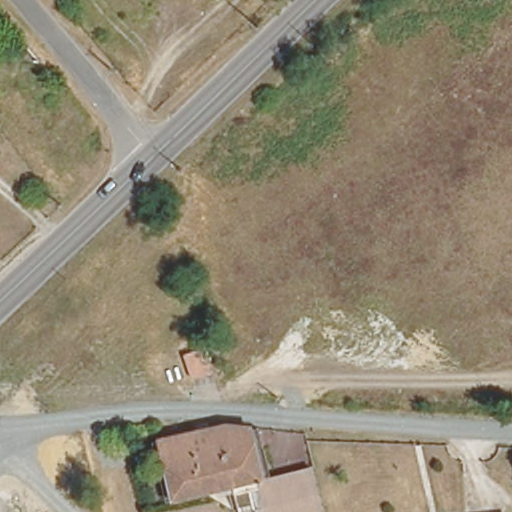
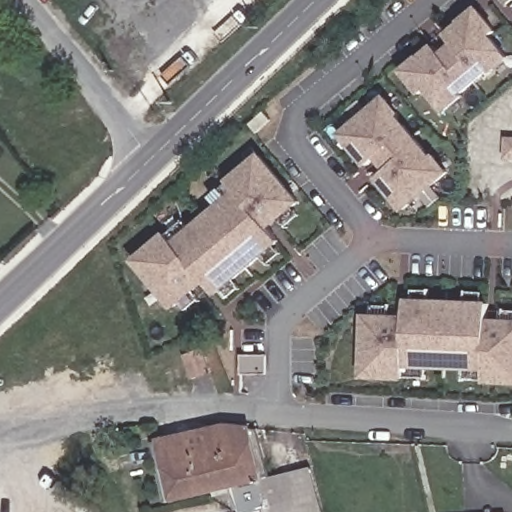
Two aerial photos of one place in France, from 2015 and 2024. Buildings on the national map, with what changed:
new [(440,52),(453,41),(447,34),(459,23),(458,21),(479,5),(498,29),(494,34),(511,58),(493,72),(492,70),(462,95),(464,98),(444,112),(427,92),(421,95),(401,71),(418,55),(419,57),(434,44),(440,52)]
new [(339,134),(386,95),(402,113),(400,114),(434,156),(436,154),(452,173),(403,211),(377,178),(386,171),(376,159),(366,167),(339,134)]
new [(217,296),(206,283),(172,309),(133,259),(164,232),(172,241),(235,190),(227,180),(260,152),(302,202),(270,229),(281,242),(217,296)]
new [(484,370),(405,367),(405,379),(405,380),(360,379),(363,313),(406,314),(406,299),(490,299),(489,317),(512,319),(512,385),(484,384),(484,370)]
new [(241,354),(266,354),(267,375),(241,375),(241,354)]
unchanged [(206,357),(214,376),(188,384),(181,366),(206,357)]
unchanged [(220,419),(251,421),(262,474),(171,494),(156,433),(220,419)]
unchanged [(315,512),(271,512),(262,474),(307,462),(317,501),(319,511),(315,512)]

